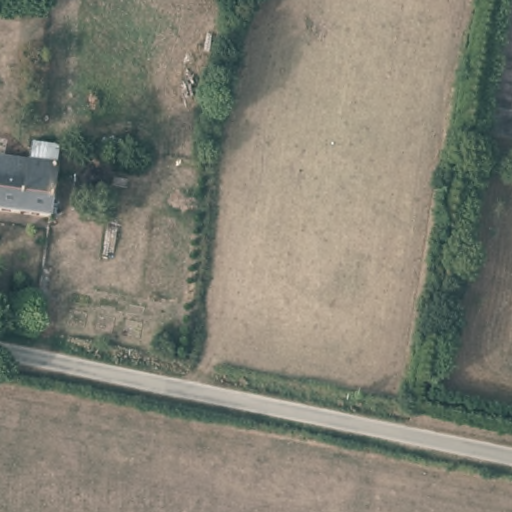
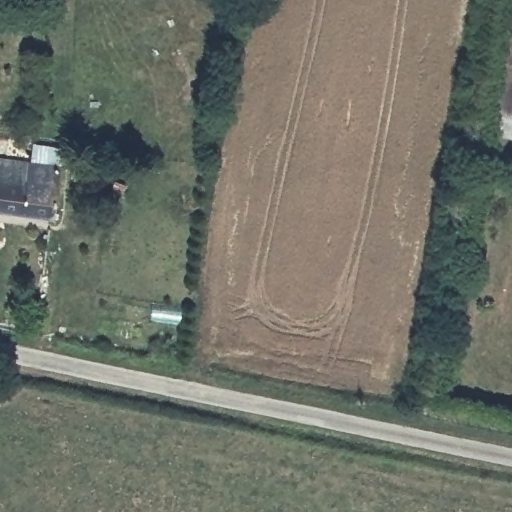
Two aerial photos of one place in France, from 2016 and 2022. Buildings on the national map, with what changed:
unchanged [(59,145),(51,215),(0,208),(0,153),(28,158),(30,141),(59,145)]

